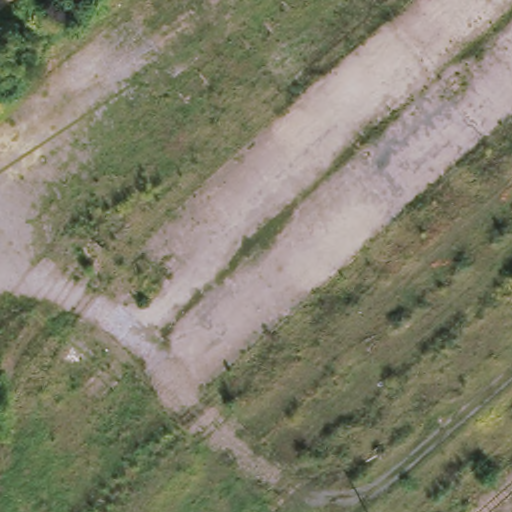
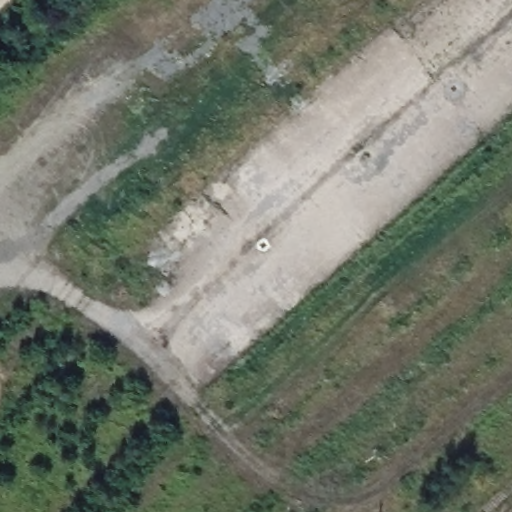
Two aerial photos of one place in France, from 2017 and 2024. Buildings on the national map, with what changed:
[]

